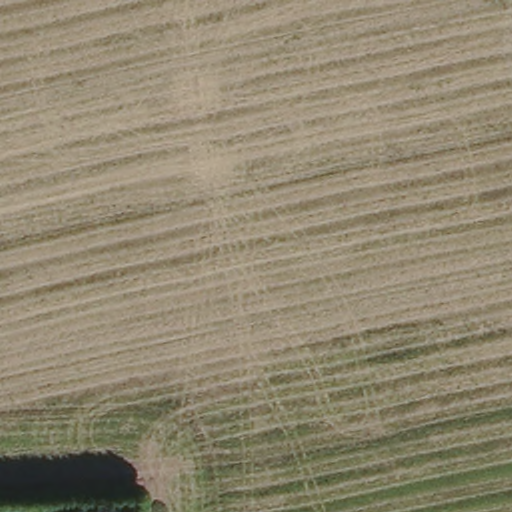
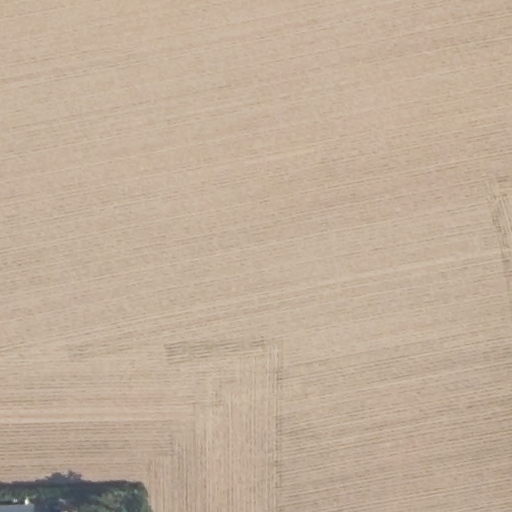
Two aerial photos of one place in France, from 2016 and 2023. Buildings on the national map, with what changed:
[]

